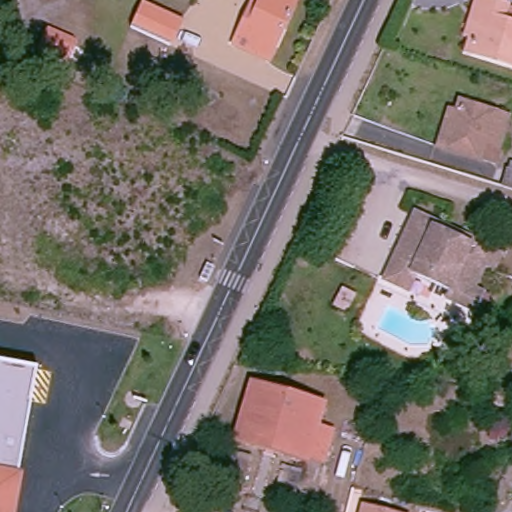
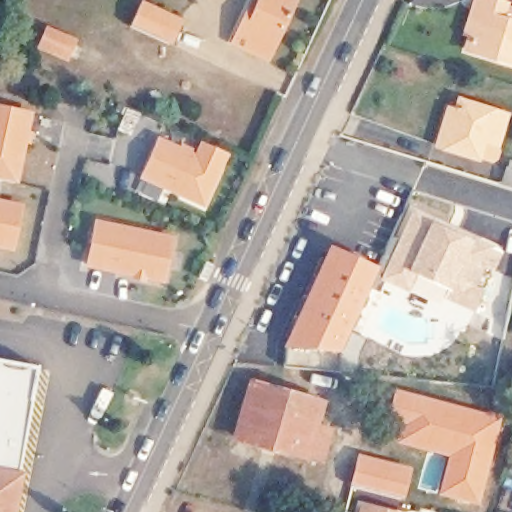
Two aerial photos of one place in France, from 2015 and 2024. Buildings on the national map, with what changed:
unchanged [(262,0),(300,0),(275,54),(243,39),(262,0)]
unchanged [(512,2),(512,52),(466,39),(468,27),(461,25),(468,3),(468,0),(504,0),(512,2)]
unchanged [(143,6),(182,24),(173,44),(134,27),(143,6)]
unchanged [(78,44),(72,58),(45,46),(52,32),(78,44)]
unchanged [(447,105),(456,107),(459,96),(503,107),(496,137),(480,133),(475,151),(447,142),(437,139),(447,105)]
new [(19,184),(0,180),(0,105),(34,111),(19,184)]
new [(194,153),(200,141),(229,153),(204,207),(139,179),(158,136),(194,153)]
new [(14,252),(0,248),(0,198),(24,203),(14,252)]
unchanged [(414,284),(406,281),(385,272),(416,206),(506,244),(498,264),(487,259),(479,278),(489,281),(479,304),(451,293),(454,285),(419,269),(414,284)]
new [(174,235),(164,284),(85,268),(94,218),(174,235)]
new [(286,347),(282,347),(327,245),(378,268),(339,355),(339,370),(284,365),(286,347)]
unchanged [(18,473),(23,475),(15,512),(0,512),(0,361),(35,368),(18,473)]
unchanged [(234,437),(253,385),(320,409),(302,461),(284,455),(252,443),(234,437)]
new [(389,388),(501,416),(478,505),(437,494),(447,457),(402,445),(377,435),(389,388)]
new [(357,453),(412,467),(404,498),(350,484),(357,453)]
unchanged [(371,512),(365,512),(366,511),(371,512)]

